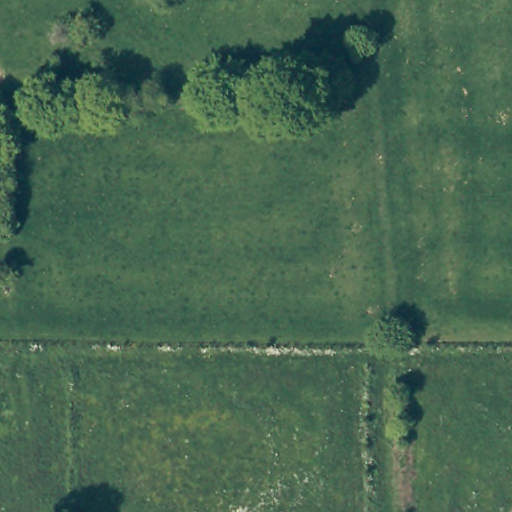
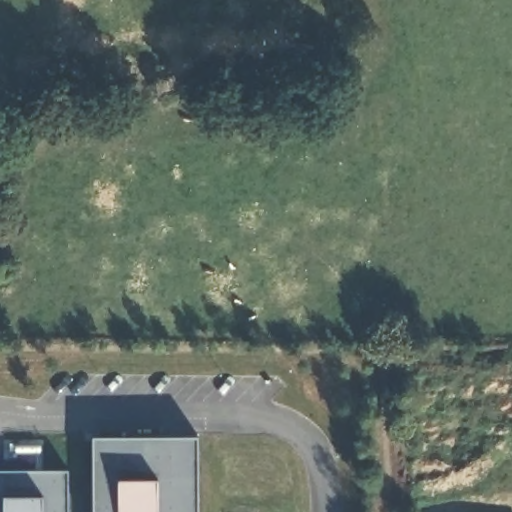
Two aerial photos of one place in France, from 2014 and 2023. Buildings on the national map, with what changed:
new [(198,512),(94,512),(94,437),(198,437),(198,512)]
new [(0,512),(0,470),(68,470),(68,512),(0,512)]

